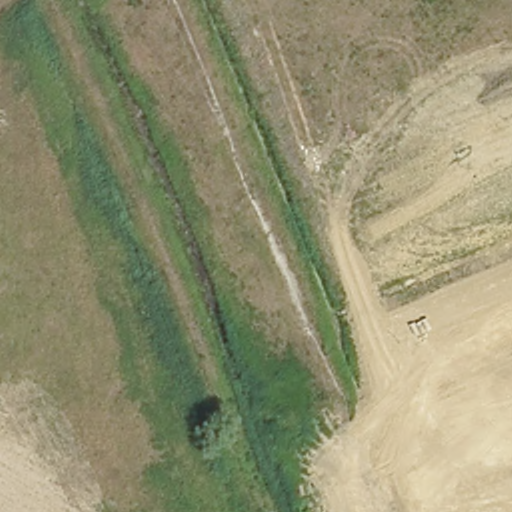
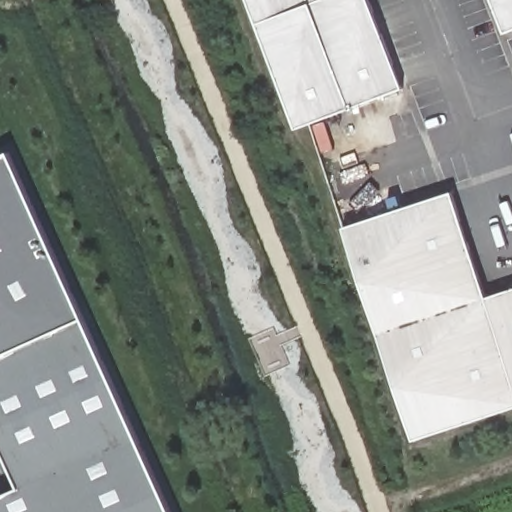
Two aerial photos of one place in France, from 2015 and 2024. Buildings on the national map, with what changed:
new [(297,129),(248,0),(370,0),(403,89),(297,129)]
new [(492,0),(512,0),(512,31),(505,34),(492,0)]
new [(183,512),(0,512),(0,506),(32,492),(0,431),(0,168),(21,156),(183,512)]
new [(452,191),(487,297),(512,289),(512,408),(415,440),(345,227),(452,191)]

